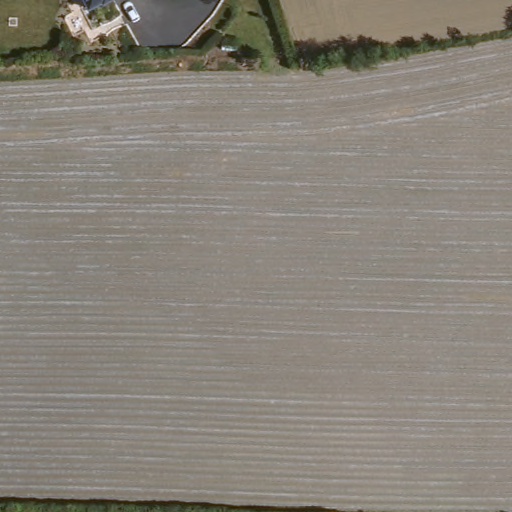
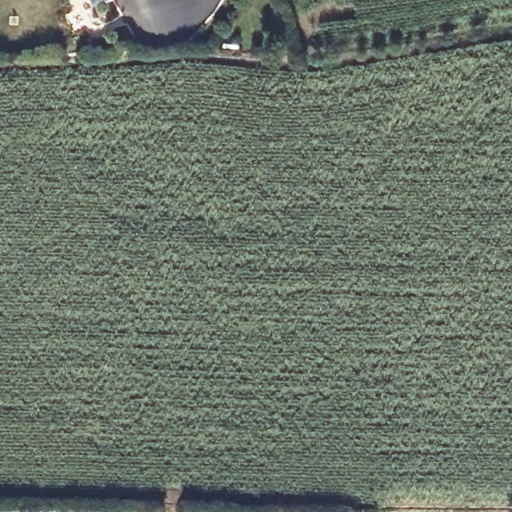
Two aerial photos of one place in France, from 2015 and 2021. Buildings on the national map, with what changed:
unchanged [(99,1),(86,6),(82,0),(107,0),(100,3),(99,1)]

